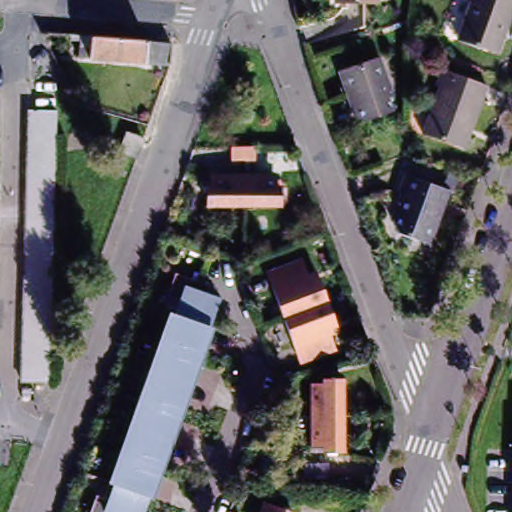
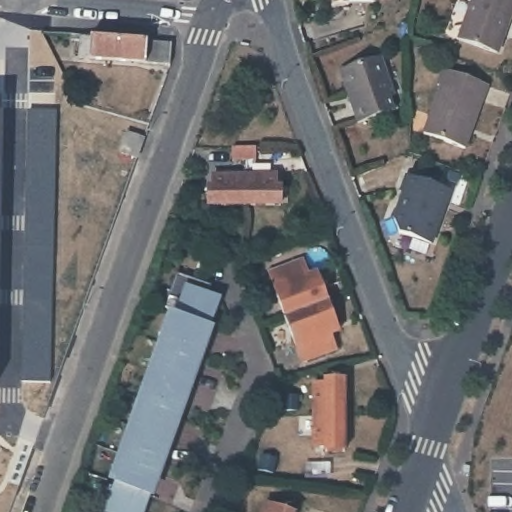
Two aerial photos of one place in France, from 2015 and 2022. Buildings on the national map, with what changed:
unchanged [(332,0),(376,0),(376,4),(332,4),(332,0)]
unchanged [(461,0),(512,0),(512,8),(509,17),(505,16),(500,34),(502,35),(495,56),(456,43),(470,3),(461,0)]
unchanged [(172,46),(170,67),(150,65),(89,60),(90,39),(156,45),(172,46)]
unchanged [(378,59),(392,99),(389,100),(393,114),(356,127),(338,73),(378,59)]
unchanged [(421,136),(438,88),(435,87),(440,70),(486,87),(463,151),(421,136)]
unchanged [(37,385),(22,385),(29,110),(57,110),(51,346),(50,386),(37,385)]
unchanged [(144,141),(137,160),(120,154),(127,134),(144,141)]
unchanged [(244,152),(255,152),(255,166),(232,166),(232,152),(244,152)]
unchanged [(280,207),(244,207),(244,177),(275,176),(275,187),(280,187),(287,188),(287,207),(280,207)]
unchanged [(208,207),(208,188),(213,188),(212,177),(244,177),(244,207),(208,207)]
unchanged [(429,247),(397,236),(392,221),(401,195),(398,194),(405,177),(448,192),(429,247)]
unchanged [(302,262),(311,286),(320,283),(335,326),(327,329),(336,352),(300,365),(267,275),(302,262)]
unchanged [(211,289),(225,295),(220,310),(217,309),(147,503),(150,504),(147,512),(91,512),(100,488),(114,493),(185,294),(172,290),(180,267),(206,277),(214,280),(211,289)]
unchanged [(313,417),(312,417),(312,386),(323,386),(323,381),(342,380),(343,417),(313,417)]
unchanged [(282,398),(297,398),(297,413),(282,413),(282,398)]
unchanged [(343,453),(325,454),(324,449),(313,449),(312,417),(313,417),(343,417),(343,453)]
unchanged [(261,457),(275,460),(272,475),(257,472),(261,457)]
unchanged [(264,512),(266,504),(288,512),(264,512)]

